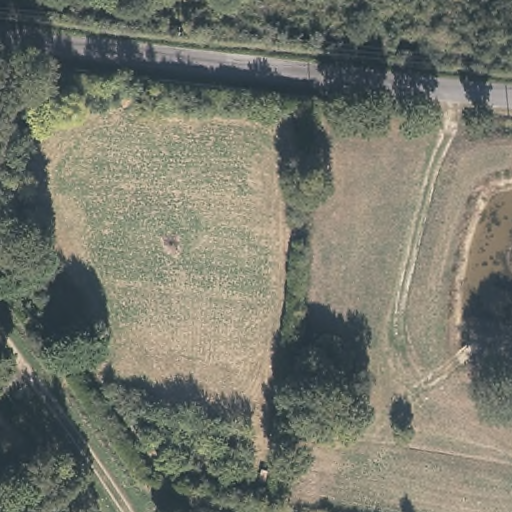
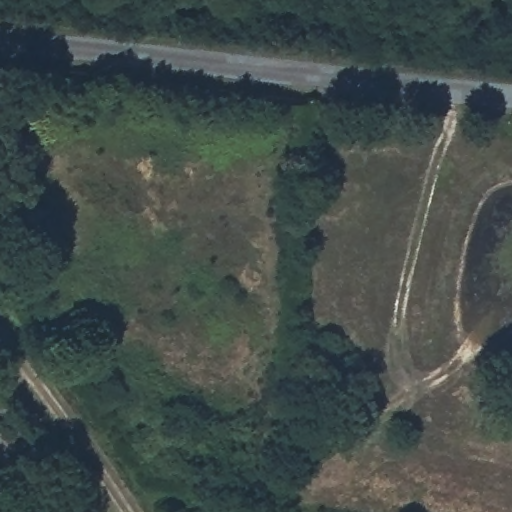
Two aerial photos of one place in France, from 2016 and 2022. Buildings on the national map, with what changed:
unchanged [(41,92),(46,120),(30,124),(25,93),(41,92)]

